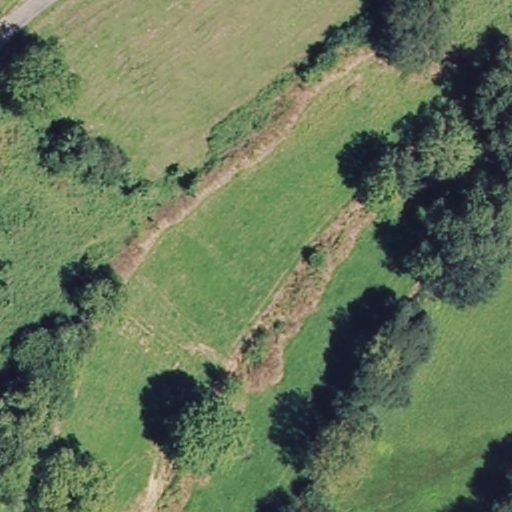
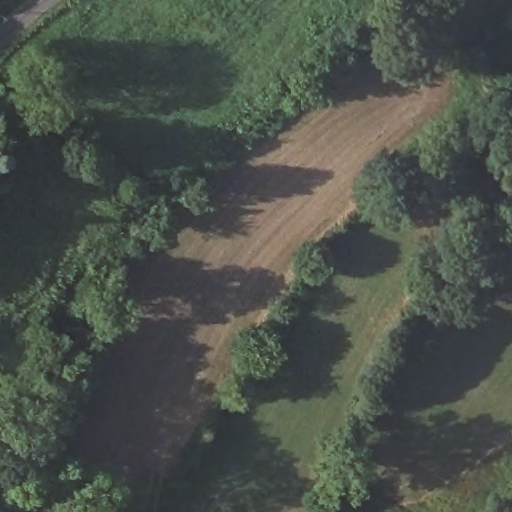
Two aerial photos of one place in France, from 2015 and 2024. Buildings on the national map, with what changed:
[]

